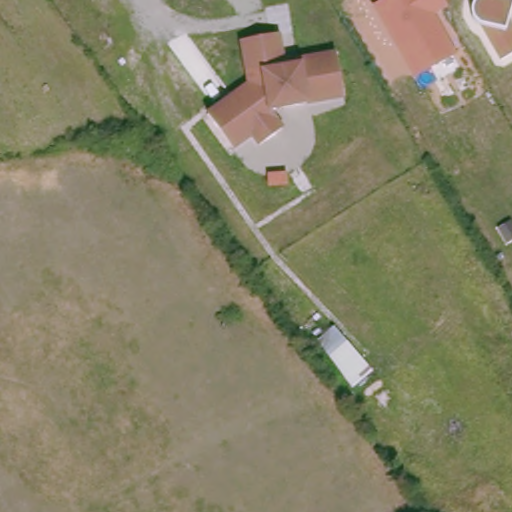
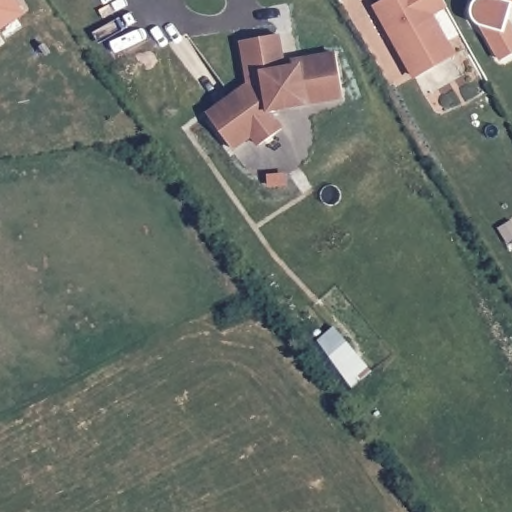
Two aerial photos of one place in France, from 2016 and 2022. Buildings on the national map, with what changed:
new [(25,15),(0,30),(0,0),(15,0),(25,15)]
unchanged [(370,5),(378,0),(444,0),(447,6),(434,13),(455,52),(412,77),(370,5)]
unchanged [(471,22),(465,9),(471,0),(512,0),(512,2),(507,22),(512,31),(512,54),(499,60),(480,24),(471,22)]
unchanged [(285,126),(263,142),(254,130),(234,144),(209,110),(250,81),(244,36),(281,31),(286,66),(301,64),(300,57),(312,56),(313,61),(323,60),(322,55),(339,52),(344,90),(345,97),(308,102),(289,105),(277,114),(285,126)]

